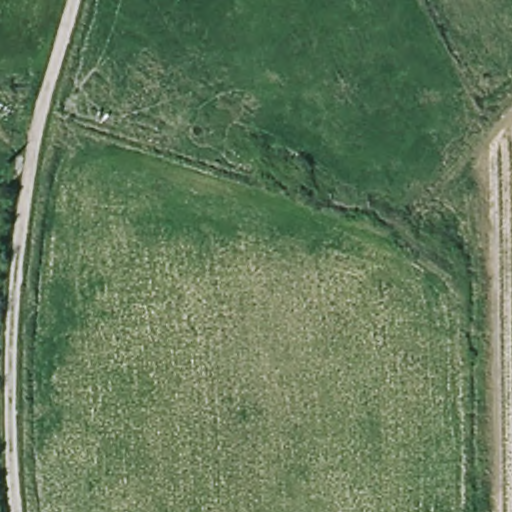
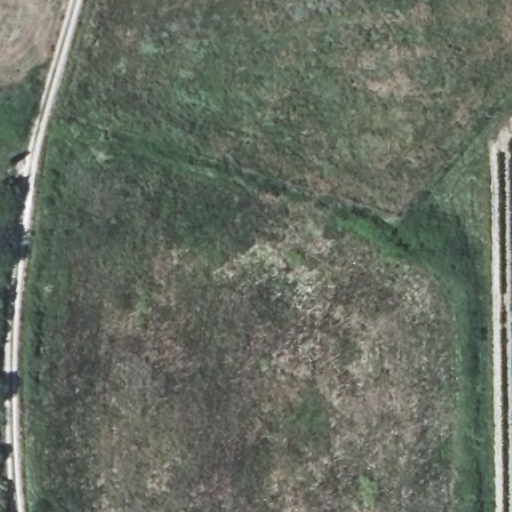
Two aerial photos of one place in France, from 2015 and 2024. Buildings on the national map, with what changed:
[]

